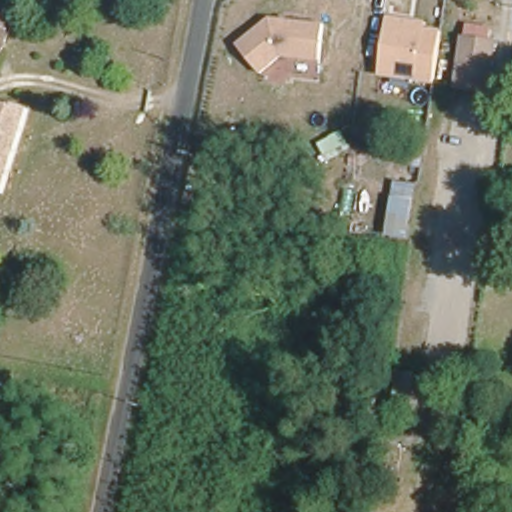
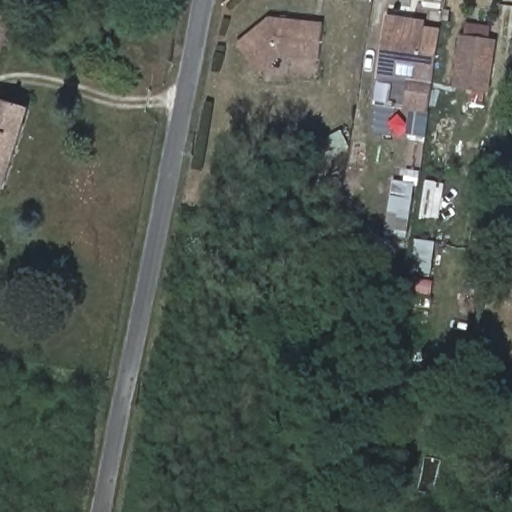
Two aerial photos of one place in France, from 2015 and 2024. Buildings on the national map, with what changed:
unchanged [(12,11),(0,44),(0,6),(12,11)]
unchanged [(426,21),(426,26),(441,29),(435,82),(379,76),(388,16),(426,21)]
unchanged [(262,74),(237,44),(270,18),(324,24),(319,62),(316,62),(314,75),(294,73),(295,60),(282,59),(262,74)]
unchanged [(459,34),(496,40),(489,93),(451,88),(459,34)]
unchanged [(0,192),(0,99),(26,107),(0,193),(0,192)]

